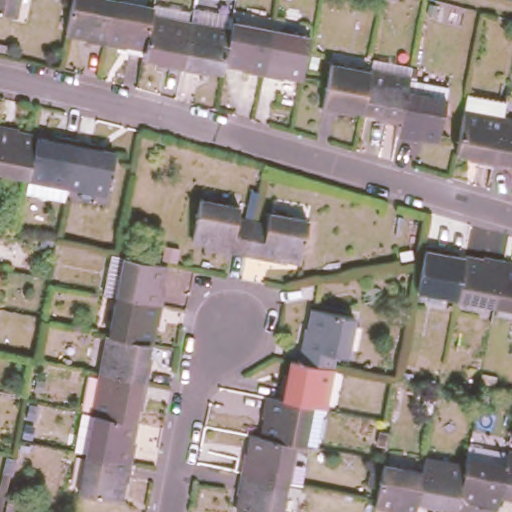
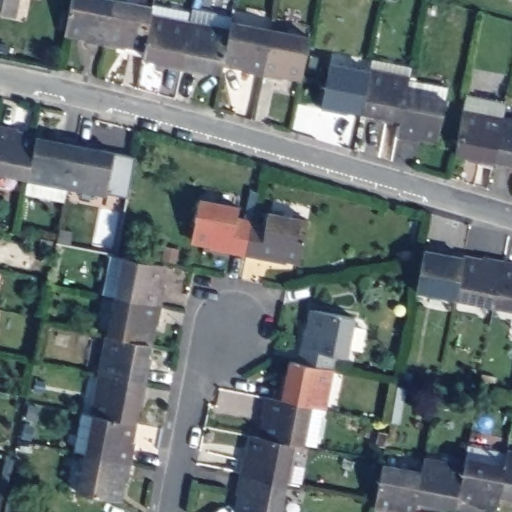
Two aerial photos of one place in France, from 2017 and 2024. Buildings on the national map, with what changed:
unchanged [(12,14),(0,12),(0,0),(14,0),(12,14)]
unchanged [(85,37),(86,32),(66,28),(71,0),(112,0),(105,41),(85,37)]
unchanged [(125,39),(124,45),(105,41),(112,0),(142,0),(153,2),(145,44),(125,39)]
unchanged [(161,60),(161,54),(143,50),(145,44),(153,2),(153,0),(160,0),(193,7),(182,64),(161,60)]
unchanged [(202,62),(201,68),(182,64),(193,7),(231,15),(231,18),(222,59),(221,66),(202,62)]
unchanged [(242,68),(243,63),(222,59),(231,18),(271,25),(262,72),(242,68)]
unchanged [(283,70),(282,75),(262,72),(271,25),(310,33),(302,75),(283,70)]
unchanged [(406,65),(405,73),(396,119),(376,115),(377,111),(358,107),(366,67),(368,57),(406,65)]
unchanged [(339,103),(338,108),(318,104),(327,60),(366,67),(358,107),(339,103)]
unchanged [(443,82),(433,135),(414,130),(412,137),(393,133),(396,119),(405,73),(443,82)]
unchanged [(470,154),(471,149),(451,145),(462,89),(502,96),(499,112),(490,158),(470,154)]
unchanged [(510,161),(490,158),(499,112),(512,115),(512,157),(511,157),(510,161)]
unchanged [(13,126),(12,132),(34,136),(26,176),(0,171),(0,123),(13,126)]
unchanged [(53,139),(55,133),(76,137),(67,184),(26,176),(34,136),(53,139)]
unchanged [(93,140),(92,147),(112,151),(104,191),(67,184),(76,137),(93,140)]
unchanged [(306,214),(299,255),(279,251),(279,257),(259,253),(243,250),(229,247),(208,243),(209,237),(191,234),(198,193),(237,201),(235,213),(249,216),(265,219),(267,207),(306,214)]
unchanged [(414,286),(420,254),(422,239),(442,243),(441,247),(462,251),(453,294),(414,286)]
unchanged [(453,294),(462,251),(480,254),(480,250),(501,254),(492,301),(453,294)]
unchanged [(492,301),(501,254),(512,256),(512,304),(492,301)]
unchanged [(153,292),(158,293),(154,314),(108,305),(115,266),(156,274),(153,292)]
unchanged [(151,331),(145,331),(141,353),(100,345),(108,305),(154,314),(151,331)]
unchanged [(283,376),(287,355),(299,358),(302,344),(306,323),(311,324),(315,305),(355,313),(347,353),(332,350),(330,364),(323,404),(308,401),(276,395),(279,375),(283,376)]
unchanged [(137,371),(143,372),(139,393),(93,384),(100,345),(141,353),(137,371)]
unchanged [(136,412),(130,411),(126,432),(85,424),(93,384),(139,393),(136,412)]
unchanged [(264,413),(258,412),(262,392),(276,395),(308,401),(301,440),(291,438),(260,432),(264,413)]
unchanged [(123,449),(129,450),(125,471),(78,463),(85,424),(126,432),(123,449)]
unchanged [(283,477),(236,468),(240,447),(245,448),(248,430),(260,432),(291,438),(283,477)]
unchanged [(475,505),(456,501),(462,473),(466,448),(505,455),(497,498),(494,512),(484,512),(474,510),(475,505)]
unchanged [(497,498),(505,455),(512,457),(512,501),(497,498)]
unchanged [(122,487),(115,487),(111,504),(71,497),(78,463),(125,471),(122,487)]
unchanged [(434,512),(430,512),(414,509),(420,477),(423,465),(462,473),(456,501),(454,512),(451,512),(435,509),(434,512)]
unchanged [(238,512),(239,508),(234,508),(238,487),(233,486),(236,468),(283,477),(277,512),(238,512)]
unchanged [(375,507),(376,500),(382,470),(420,477),(414,509),(413,512),(394,512),(395,510),(375,507)]
unchanged [(8,512),(10,502),(26,505),(25,512),(8,512)]

